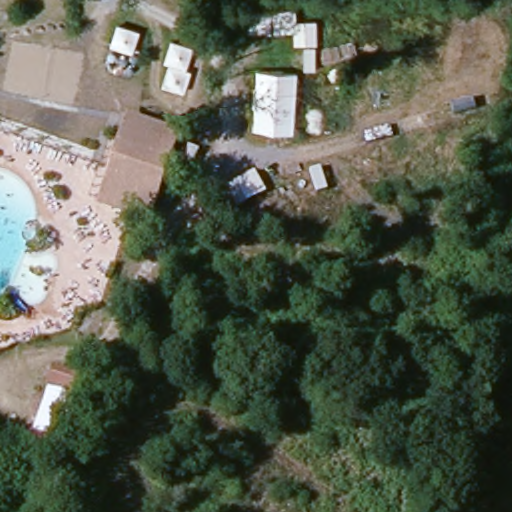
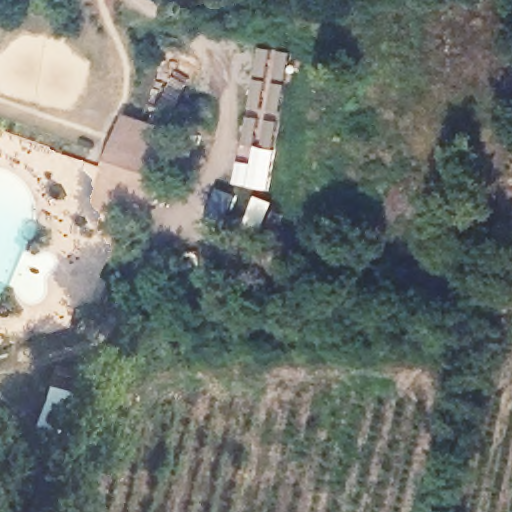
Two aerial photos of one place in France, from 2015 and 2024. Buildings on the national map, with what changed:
unchanged [(129,216),(100,206),(120,145),(130,116),(139,119),(180,133),(156,202),(149,222),(129,216)]
unchanged [(78,394),(49,384),(54,368),(84,378),(78,394)]

